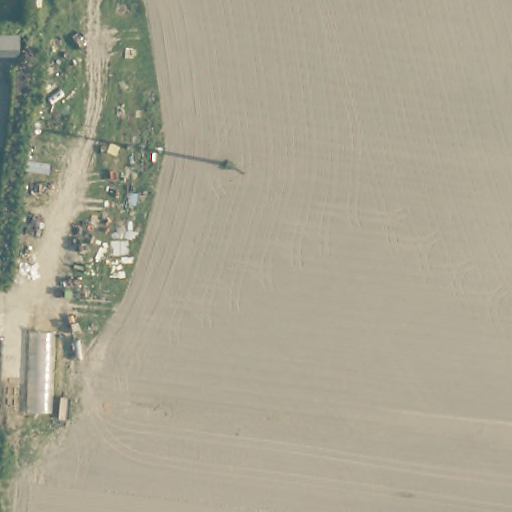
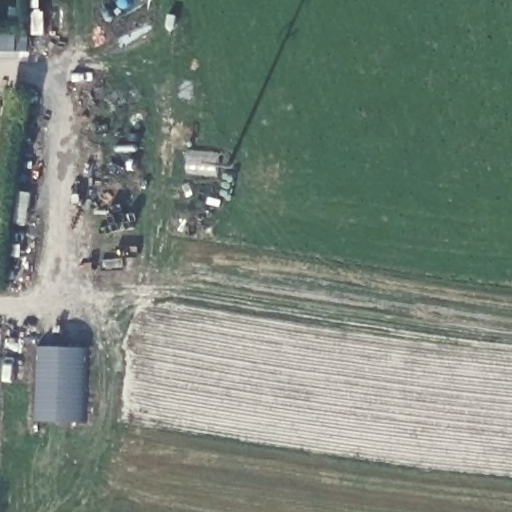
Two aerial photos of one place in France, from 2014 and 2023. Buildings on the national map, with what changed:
new [(85,424),(37,422),(38,346),(87,348),(85,424)]

